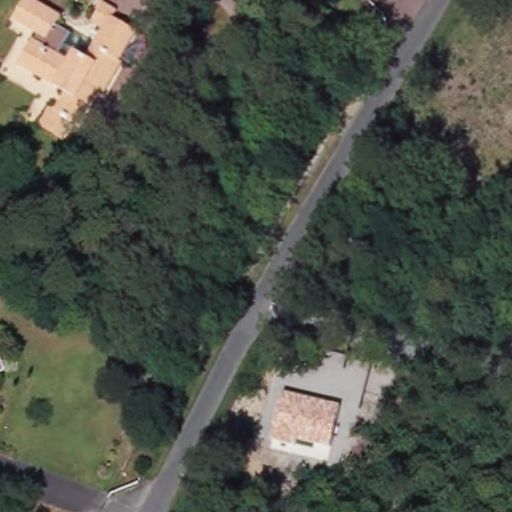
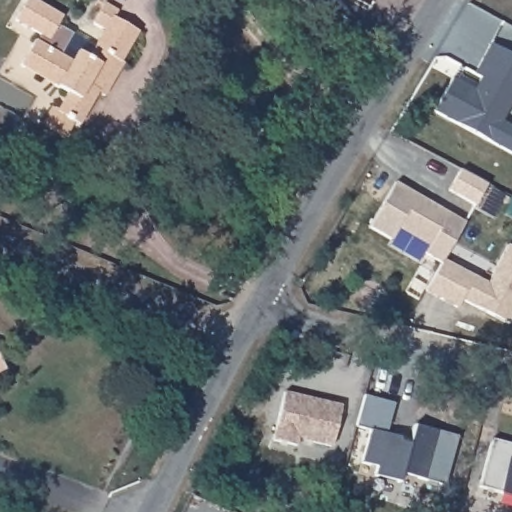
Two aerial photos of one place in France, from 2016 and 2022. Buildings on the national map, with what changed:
unchanged [(41,125),(52,106),(55,108),(65,91),(18,63),(32,39),(35,41),(39,34),(15,21),(27,0),(33,0),(62,17),(56,26),(93,47),(103,30),(92,24),(104,3),(118,12),(114,19),(138,33),(120,63),(123,65),(113,82),(104,97),(99,94),(79,128),(74,125),(66,139),(41,125)]
new [(479,78),(472,74),(489,43),(512,56),(512,100),(501,121),(512,127),(512,154),(433,112),(451,78),(473,90),(479,78)]
new [(449,212),(463,220),(460,224),(440,260),(424,251),(428,244),(396,226),(389,238),(368,226),(393,181),(449,212)]
new [(506,245),(512,248),(512,317),(508,325),(462,300),(457,308),(424,290),(442,259),(487,282),(506,245)]
unchanged [(1,373),(0,373),(0,372),(1,373)]
unchanged [(284,391),(341,406),(332,446),(296,438),(294,446),(272,439),(284,391)]
new [(396,403),(388,433),(403,437),(402,441),(412,444),(417,425),(460,436),(446,485),(405,474),(402,482),(377,475),(379,467),(364,462),(373,430),(358,426),(367,395),(396,403)]
new [(512,441),(512,493),(482,484),(495,436),(512,441)]

